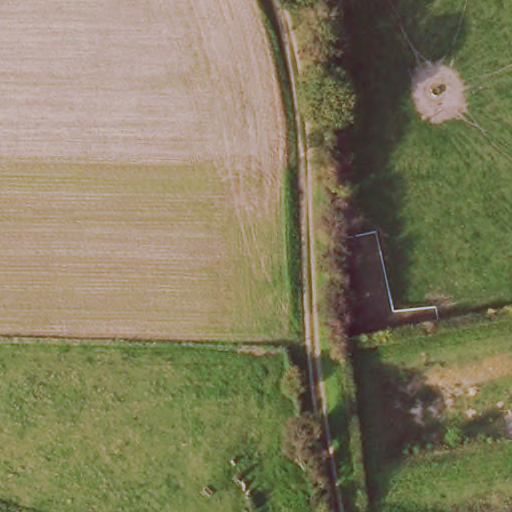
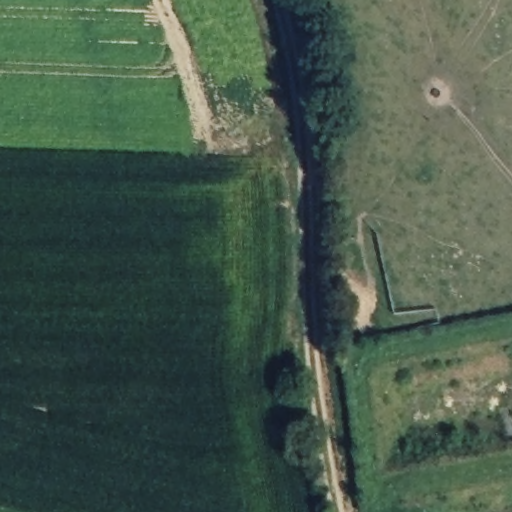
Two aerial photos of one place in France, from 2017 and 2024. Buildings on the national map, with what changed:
[]

